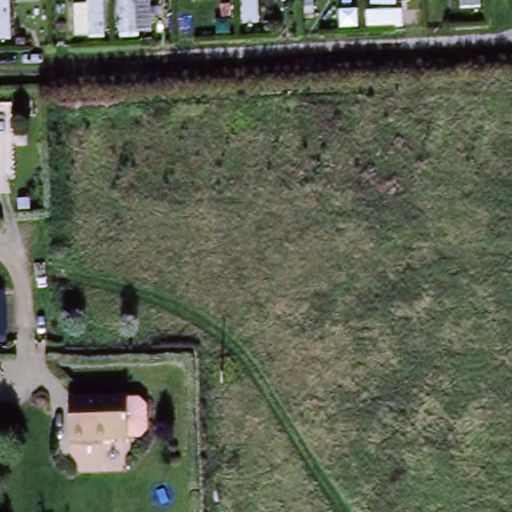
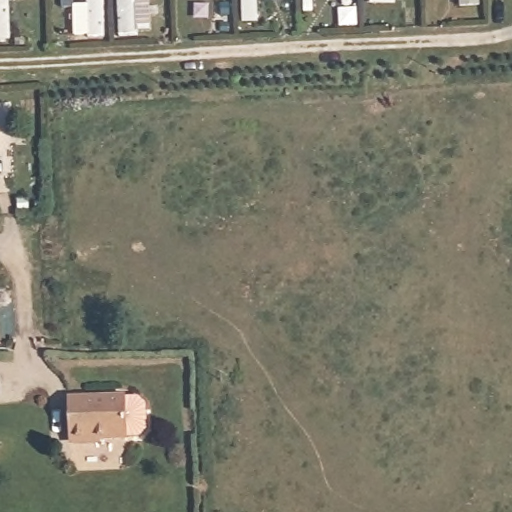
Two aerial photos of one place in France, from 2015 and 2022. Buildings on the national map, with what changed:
unchanged [(92,0),(104,0),(105,36),(94,39),(92,34),(75,34),(75,3),(92,1),(92,0)]
unchanged [(2,281),(2,328),(0,328),(0,281),(2,281)]
unchanged [(72,395),(129,394),(130,436),(72,437),(72,395)]

